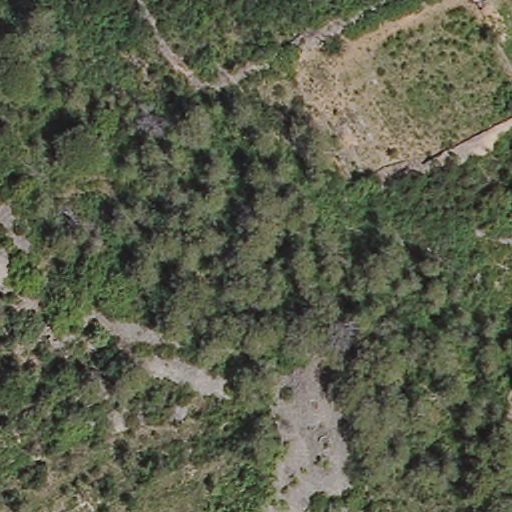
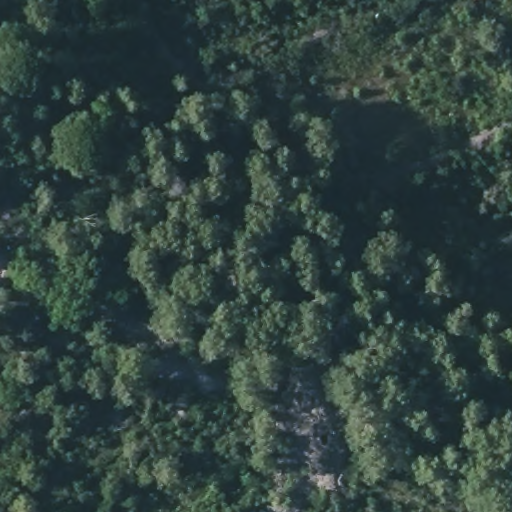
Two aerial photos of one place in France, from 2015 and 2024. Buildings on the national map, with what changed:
unchanged [(472,1),(472,0),(475,0),(472,1)]

